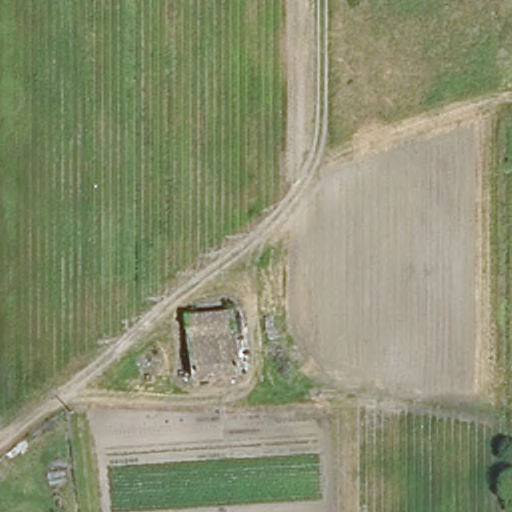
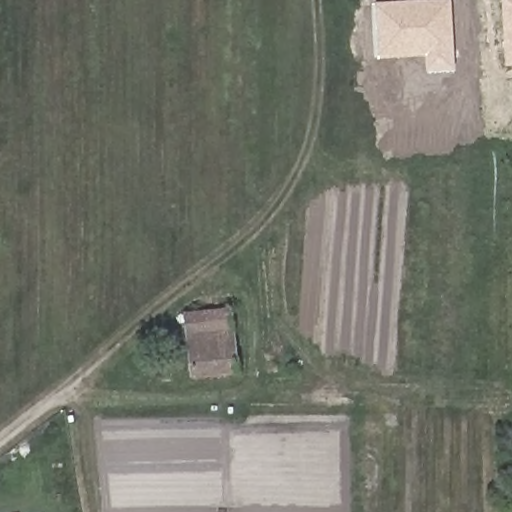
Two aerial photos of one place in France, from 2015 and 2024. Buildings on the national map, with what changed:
new [(454,70),(425,72),(424,56),(378,59),(375,3),(425,0),(451,0),(454,70)]
new [(512,67),(505,67),(502,0),(512,0),(512,67)]
unchanged [(230,310),(238,365),(192,371),(184,316),(230,310)]
unchanged [(2,512),(22,508),(24,512),(2,512)]

